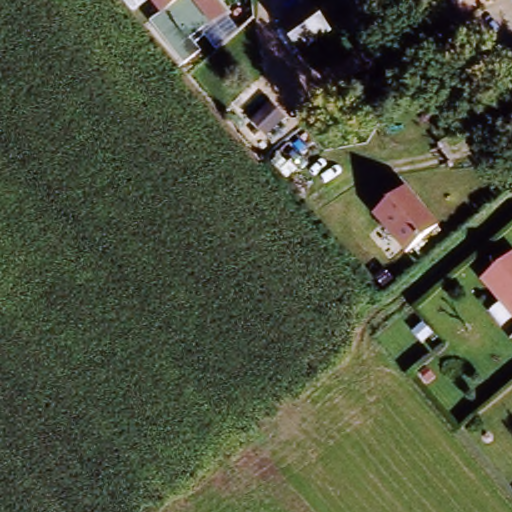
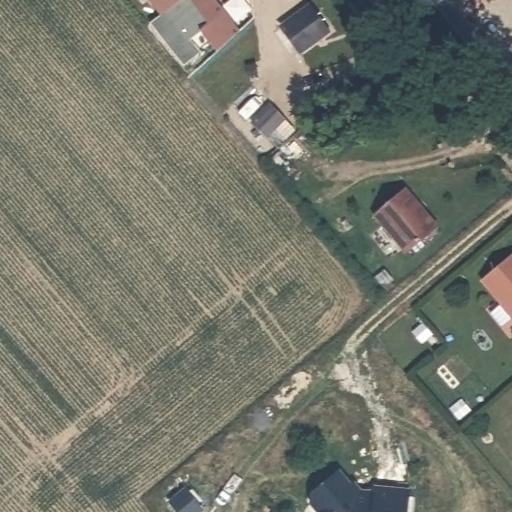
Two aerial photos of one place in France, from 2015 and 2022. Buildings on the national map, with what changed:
unchanged [(149,0),(178,0),(161,15),(149,0)]
unchanged [(211,0),(221,12),(174,53),(150,25),(178,0),(211,0)]
unchanged [(436,20),(419,2),(421,0),(467,0),(455,11),(480,39),(465,53),(436,20)]
unchanged [(275,28),(285,21),(307,4),(331,33),(305,51),(296,57),(275,28)]
unchanged [(200,51),(182,65),(174,53),(190,39),(200,51)]
unchanged [(410,254),(378,217),(409,191),(440,228),(410,254)]
unchanged [(486,281),(512,262),(512,314),(486,281)]
new [(358,495),(373,498),(375,488),(407,491),(407,512),(321,512),(309,496),(340,472),(358,495)]

